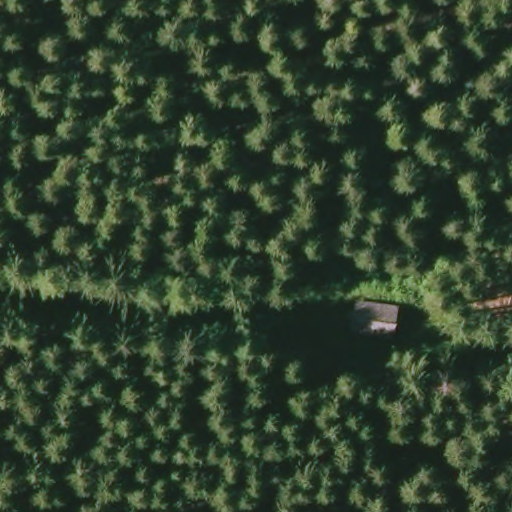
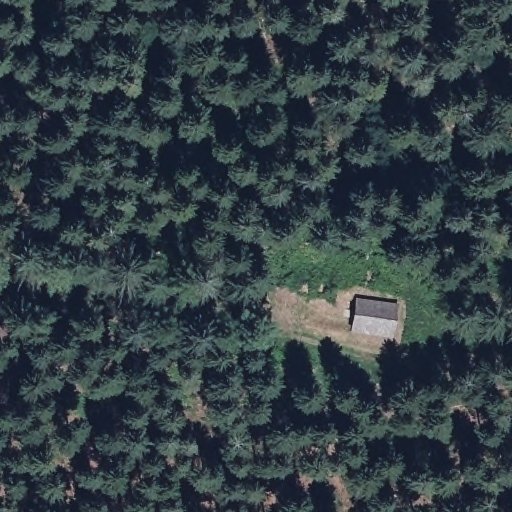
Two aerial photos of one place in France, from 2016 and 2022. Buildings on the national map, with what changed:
unchanged [(391,338),(341,329),(347,293),(394,303),(391,338)]

